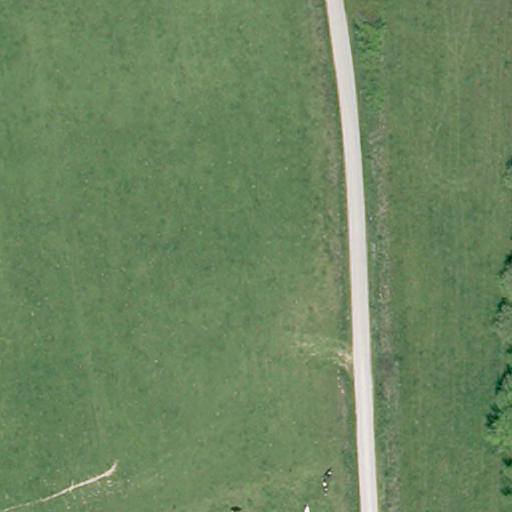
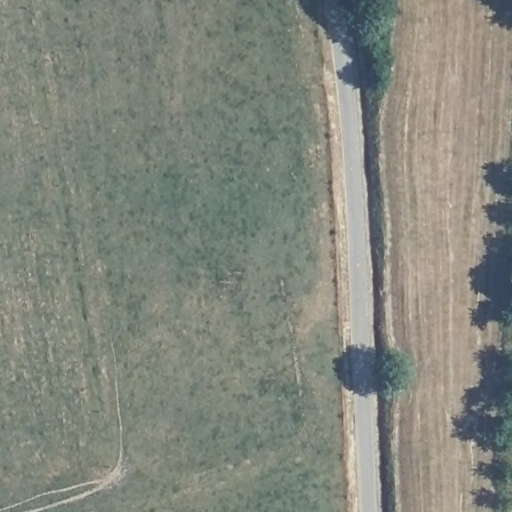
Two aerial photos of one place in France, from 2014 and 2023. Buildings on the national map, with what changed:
[]

